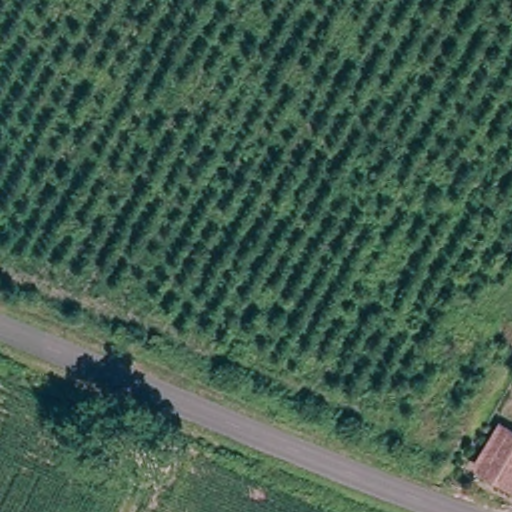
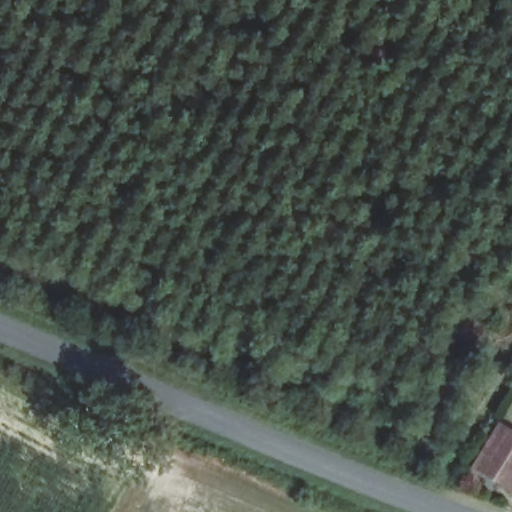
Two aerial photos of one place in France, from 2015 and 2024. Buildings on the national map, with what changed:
unchanged [(500,427),(512,435),(512,491),(475,469),(500,427)]

